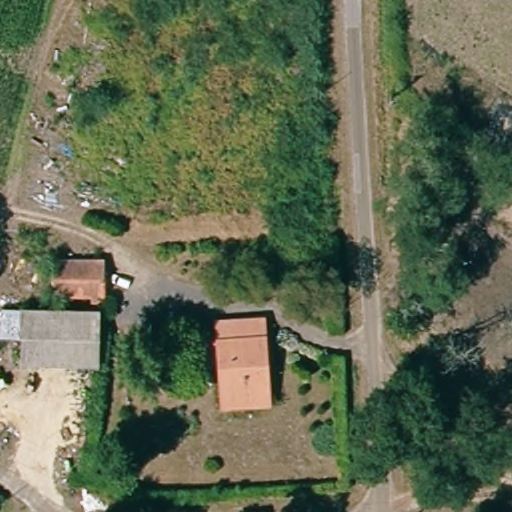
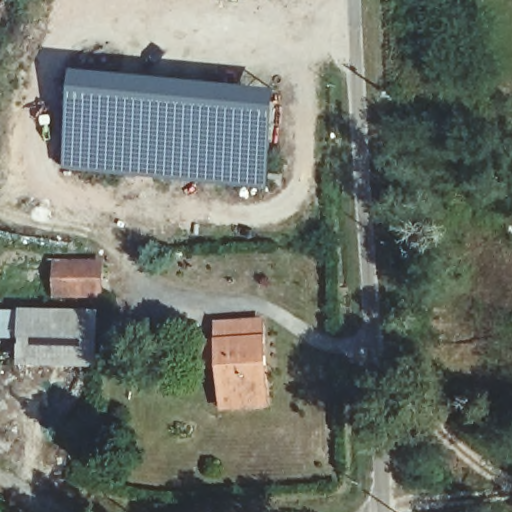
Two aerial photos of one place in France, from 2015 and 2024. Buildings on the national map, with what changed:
new [(74,71),(279,90),(269,189),(66,169),(74,71)]
unchanged [(101,297),(82,295),(57,293),(56,262),(86,263),(105,268),(101,297)]
unchanged [(9,370),(9,311),(99,313),(97,371),(9,370)]
unchanged [(270,405),(225,409),(215,323),(265,319),(270,405)]

